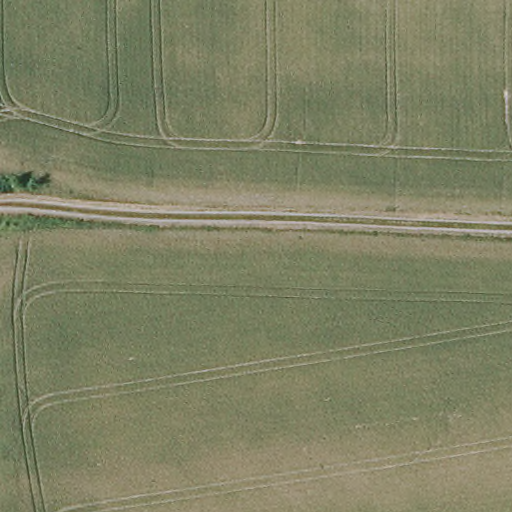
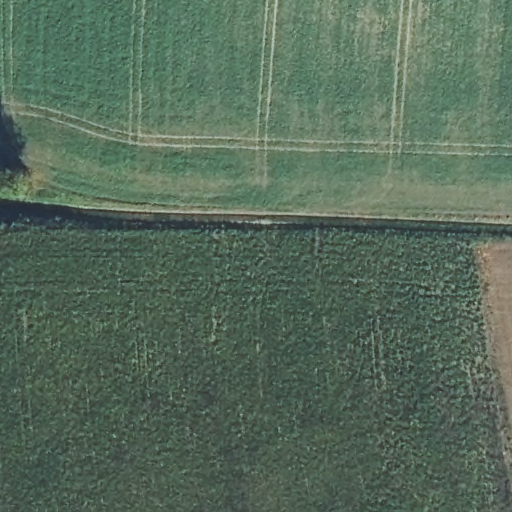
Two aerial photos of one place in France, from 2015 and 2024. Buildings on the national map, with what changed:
[]

